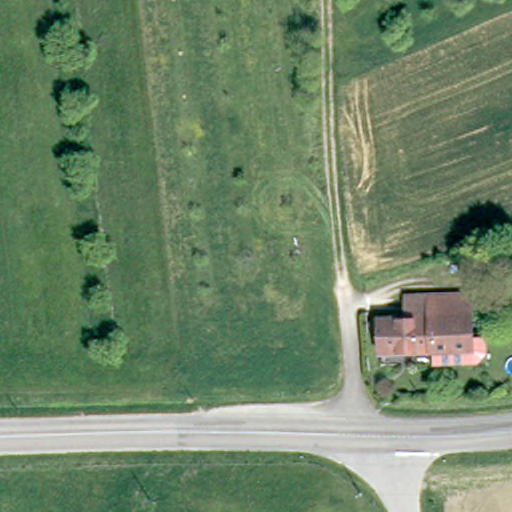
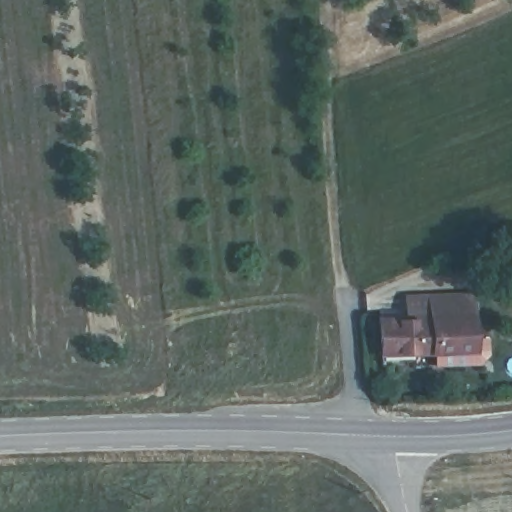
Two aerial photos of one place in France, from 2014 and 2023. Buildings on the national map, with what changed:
unchanged [(410,303),(432,302),(473,300),(475,354),(374,357),(372,326),(410,323),(410,303)]

